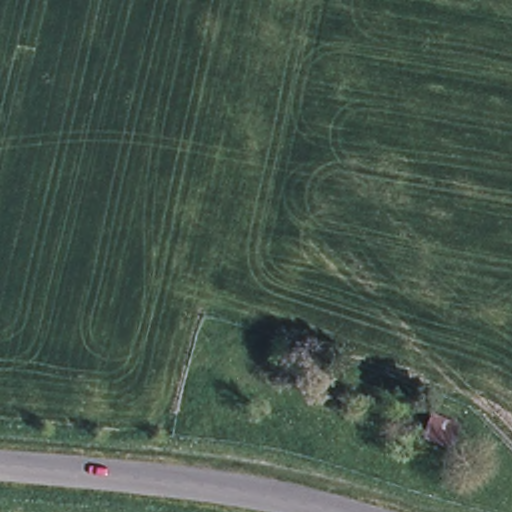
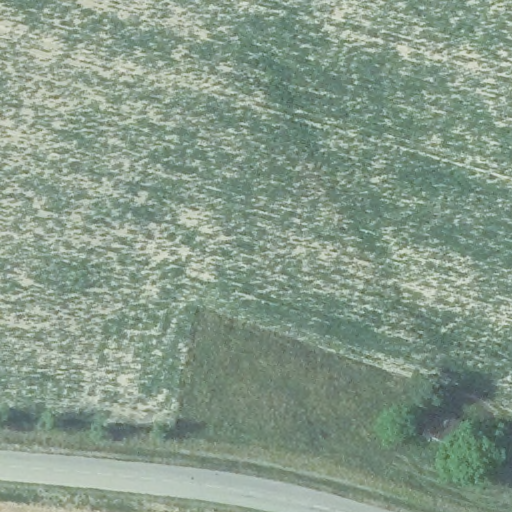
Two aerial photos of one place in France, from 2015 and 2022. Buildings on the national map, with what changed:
unchanged [(460,424),(454,448),(437,445),(420,440),(425,416),(460,424)]

